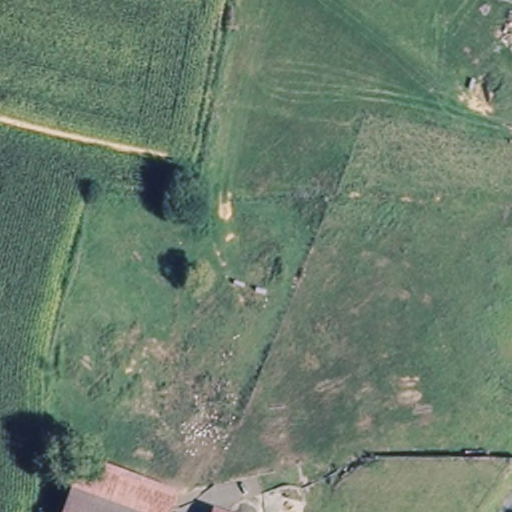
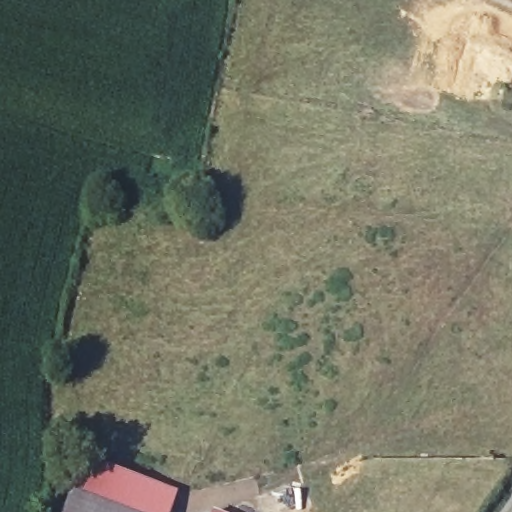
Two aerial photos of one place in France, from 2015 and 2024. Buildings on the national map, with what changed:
unchanged [(171,500),(167,512),(130,512),(69,489),(81,453),(145,477),(176,489),(171,500)]
unchanged [(69,489),(130,512),(60,512),(69,489)]
unchanged [(234,512),(208,512),(211,504),(234,512)]

